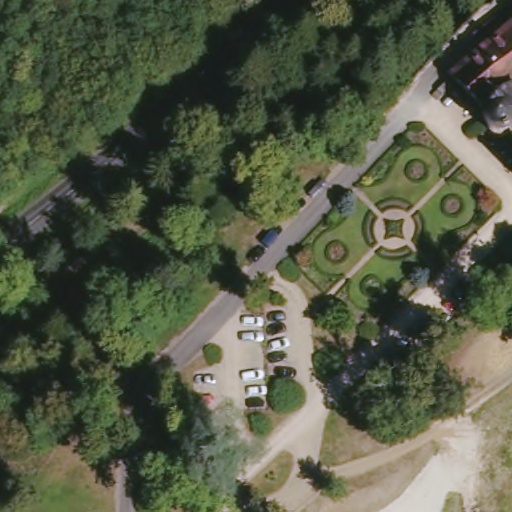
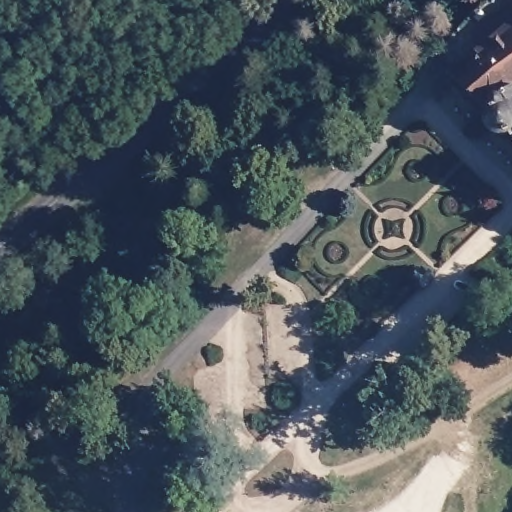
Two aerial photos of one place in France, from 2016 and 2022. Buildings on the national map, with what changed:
unchanged [(502,131),(500,126),(497,116),(483,101),(478,106),(473,100),(477,96),(464,81),(512,32),(512,141),(510,140),(502,131)]

